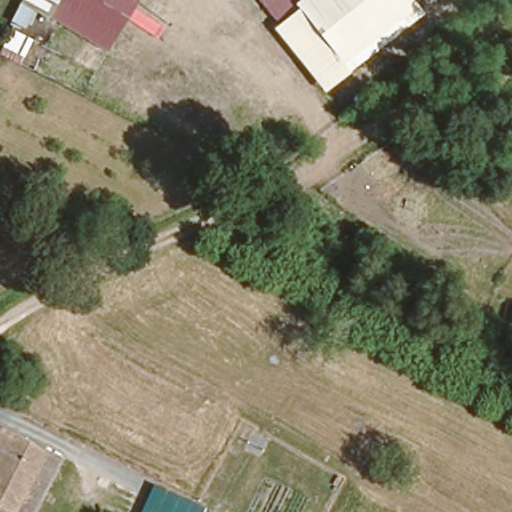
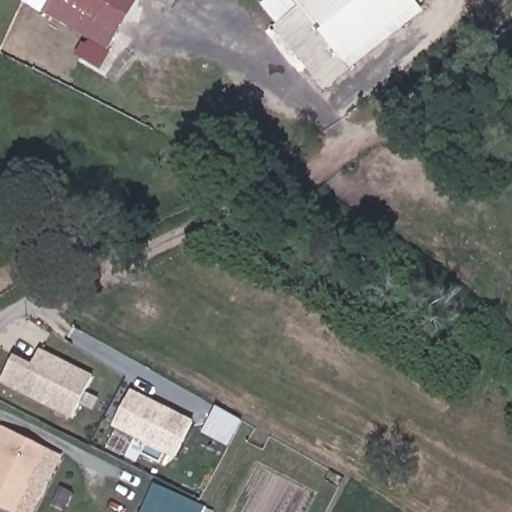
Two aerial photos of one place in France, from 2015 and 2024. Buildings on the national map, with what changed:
unchanged [(126,17),(105,51),(40,17),(22,7),(26,0),(138,0),(139,0),(134,7),(126,17)]
unchanged [(427,11),(353,70),(325,91),(273,25),(280,20),(265,0),(419,0),(427,11)]
new [(0,384),(0,382),(12,360),(31,370),(39,354),(93,380),(73,420),(0,384)]
new [(109,420),(122,395),(126,387),(135,391),(189,418),(172,451),(109,420)]
unchanged [(0,507),(0,427),(38,444),(7,510),(0,507)]
unchanged [(22,512),(13,512),(7,510),(38,444),(50,449),(22,512)]
new [(141,512),(154,486),(204,507),(215,512),(214,512),(141,512)]

